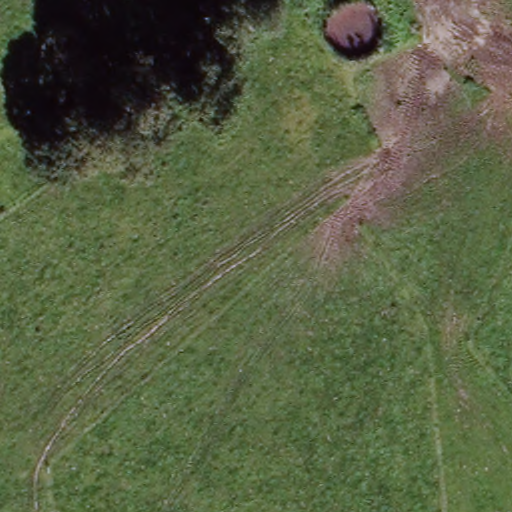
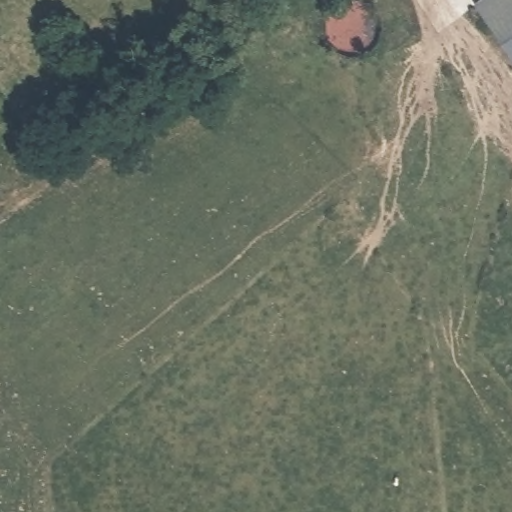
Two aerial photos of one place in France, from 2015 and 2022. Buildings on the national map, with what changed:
new [(512,0),(512,56),(478,8),(490,0),(512,0)]

